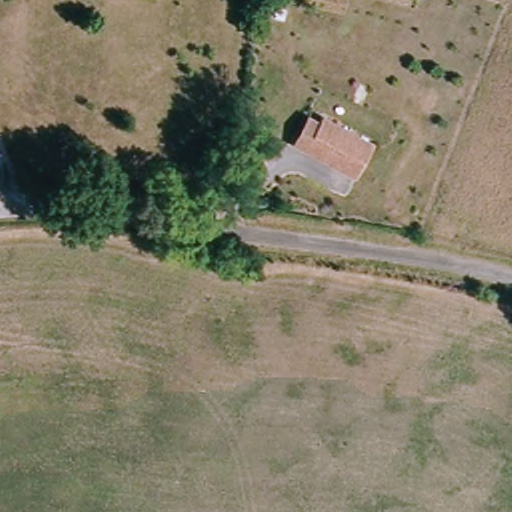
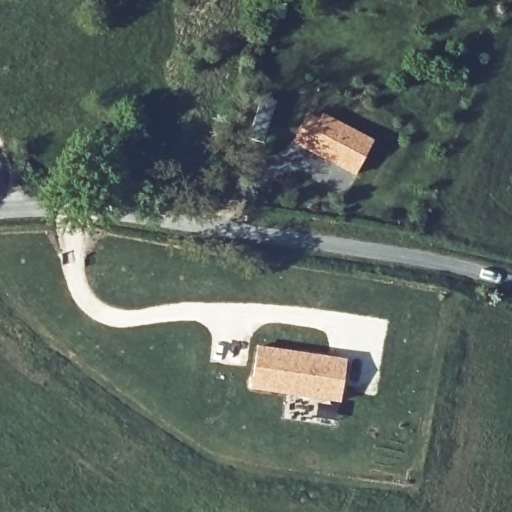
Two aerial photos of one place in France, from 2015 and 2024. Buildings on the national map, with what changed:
unchanged [(366,142),(348,175),(300,148),(318,115),(366,142)]
new [(257,345),(346,359),(339,401),(251,388),(257,345)]

